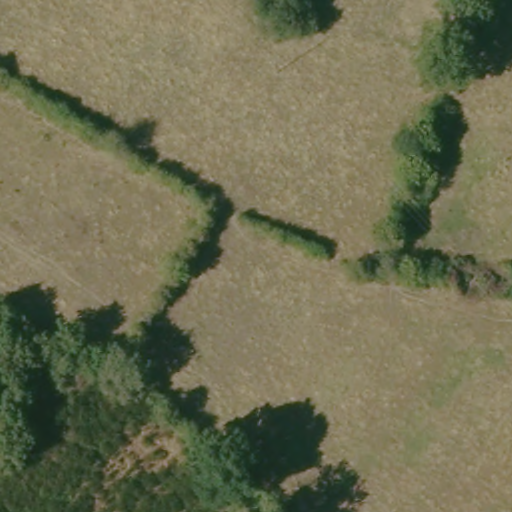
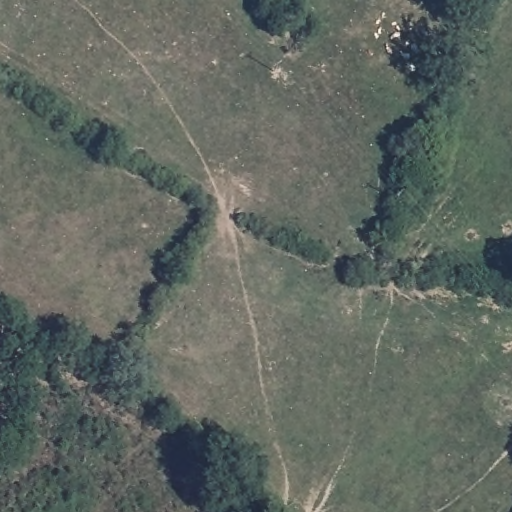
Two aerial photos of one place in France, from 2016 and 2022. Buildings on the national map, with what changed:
[]

